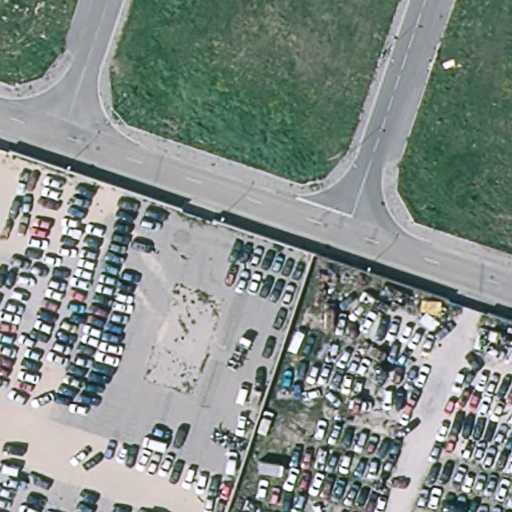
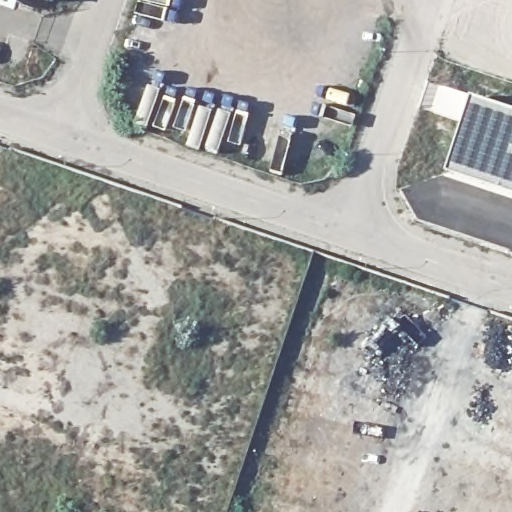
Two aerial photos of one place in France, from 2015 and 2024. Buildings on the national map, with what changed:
new [(18,13),(0,7),(0,0),(23,0),(18,13)]
new [(53,4),(41,0),(54,0),(53,4)]
new [(512,193),(451,173),(477,97),(512,108),(512,193)]

